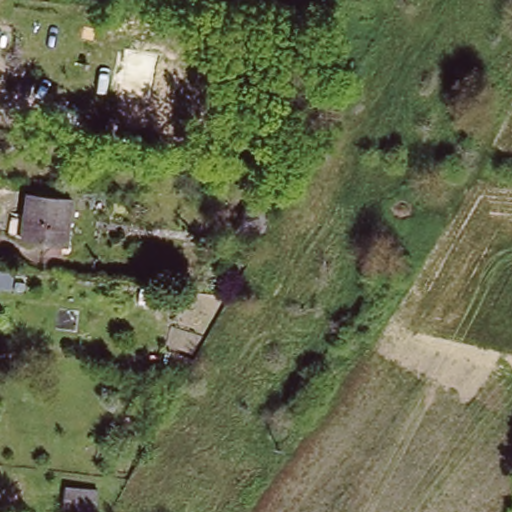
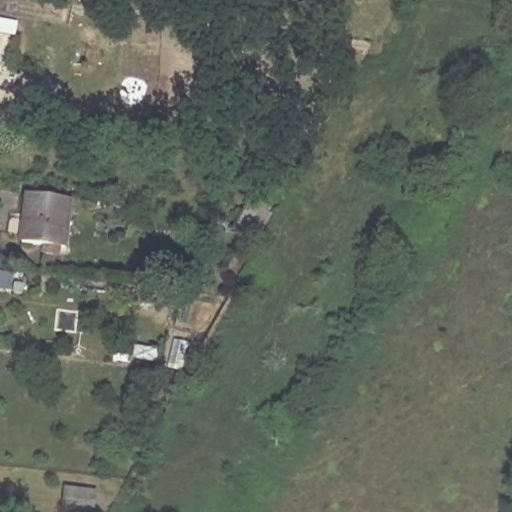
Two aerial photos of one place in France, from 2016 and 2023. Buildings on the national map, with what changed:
unchanged [(78,208),(74,255),(35,253),(39,205),(78,208)]

